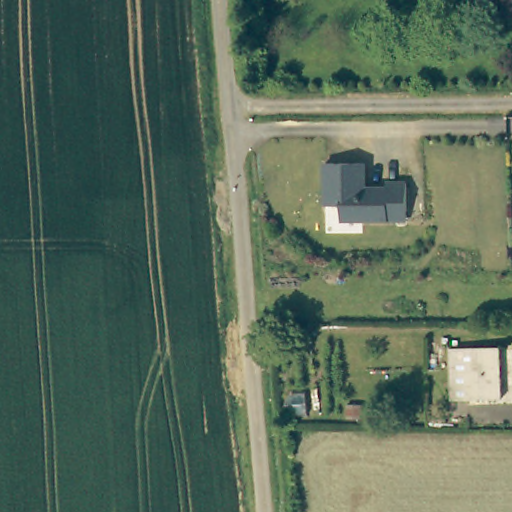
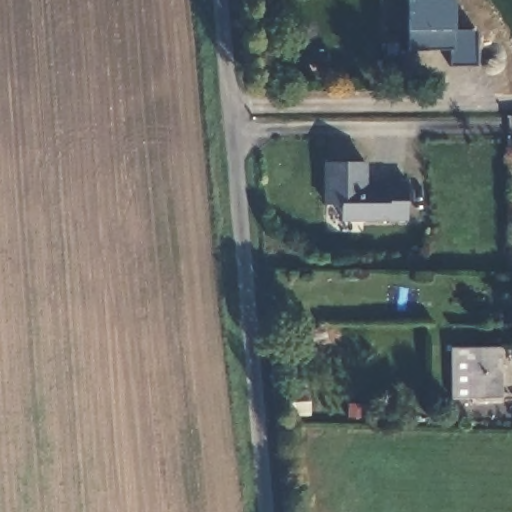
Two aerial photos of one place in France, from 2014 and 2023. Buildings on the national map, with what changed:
new [(452,30),(480,30),(480,65),(452,65),(452,49),(407,49),(406,0),(452,0),(452,30)]
unchanged [(339,204),(324,204),(324,162),(362,162),(362,187),(374,187),(377,190),(384,190),(384,181),(406,181),(406,220),(339,220),(339,204)]
unchanged [(501,398),(451,400),(450,348),(500,347),(501,398)]

